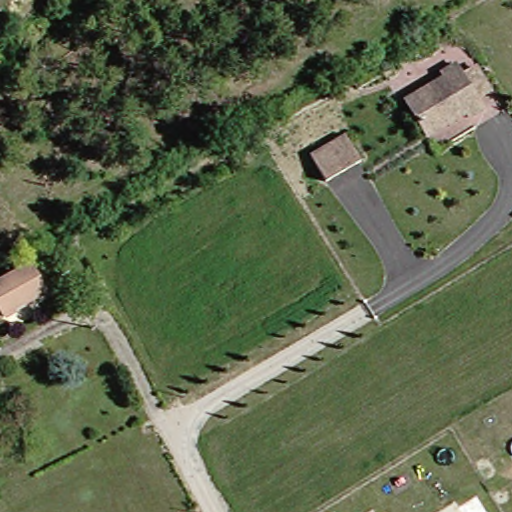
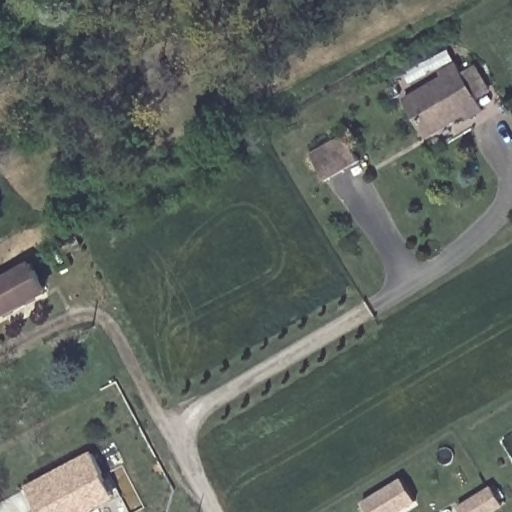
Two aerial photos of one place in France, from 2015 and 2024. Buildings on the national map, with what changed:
unchanged [(457,120),(454,116),(415,139),(393,104),(432,79),(430,76),(443,66),(451,77),(462,69),(477,93),(464,101),(471,111),(457,120)]
unchanged [(365,155),(331,175),(316,149),(348,128),(365,155)]
unchanged [(61,279),(0,313),(0,278),(45,252),(61,279)]
new [(100,474),(112,495),(82,512),(38,512),(26,490),(91,454),(102,474),(100,474)]
unchanged [(504,506),(495,512),(462,512),(458,506),(492,486),(504,506)]

